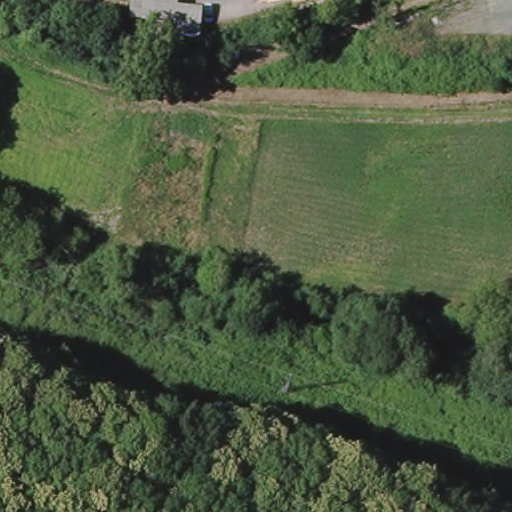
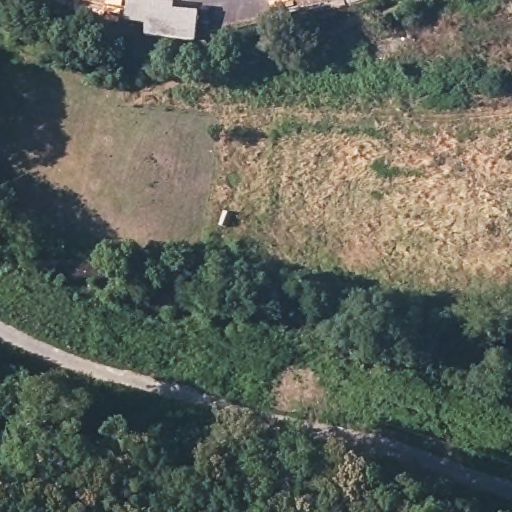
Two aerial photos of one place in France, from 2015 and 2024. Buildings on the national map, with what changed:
unchanged [(202,8),(194,46),(145,37),(146,23),(128,20),(131,0),(138,0),(202,8)]

